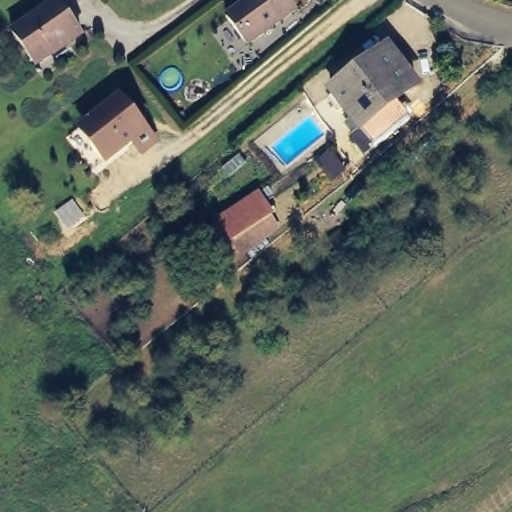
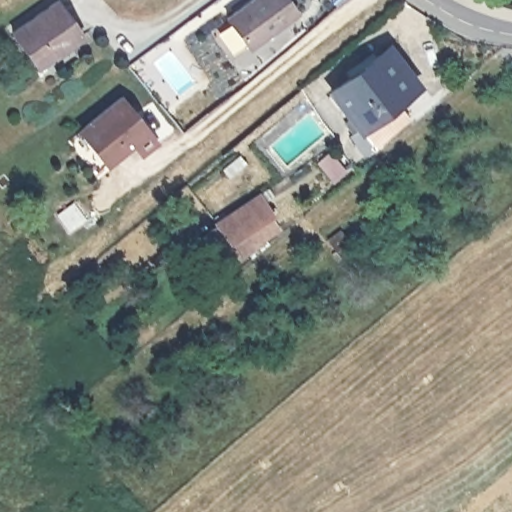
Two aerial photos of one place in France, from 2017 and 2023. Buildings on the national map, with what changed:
unchanged [(57,0),(81,31),(36,63),(11,28),(49,0),(57,0)]
unchanged [(288,0),(293,6),(246,41),(223,11),(239,0),(288,0)]
unchanged [(373,139),(330,84),(388,39),(417,77),(397,92),(411,110),(373,139)]
unchanged [(135,150),(126,139),(100,159),(88,169),(61,136),(77,124),(115,93),(142,125),(151,137),(135,150)]
unchanged [(253,192),(266,208),(228,236),(216,220),(253,192)]

